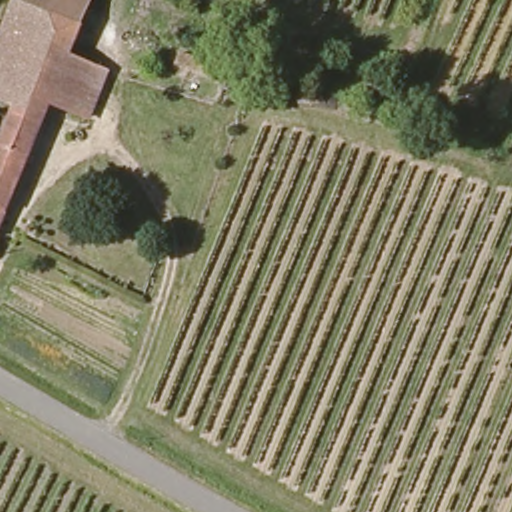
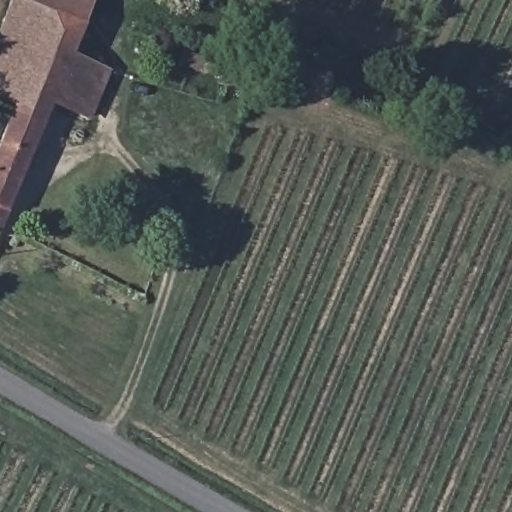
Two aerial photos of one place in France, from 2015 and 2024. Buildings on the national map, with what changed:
unchanged [(65,57),(102,72),(84,118),(46,103),(0,218),(0,135),(12,102),(10,101),(0,97),(0,30),(11,0),(19,0),(79,22),(65,57)]
unchanged [(79,22),(19,0),(87,0),(79,22)]
unchanged [(216,66),(211,79),(174,64),(179,52),(216,66)]

